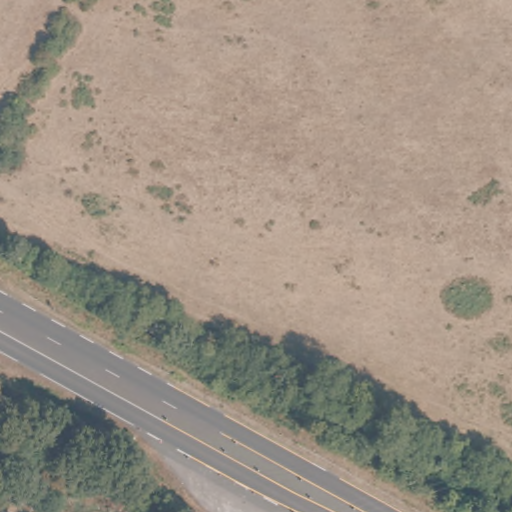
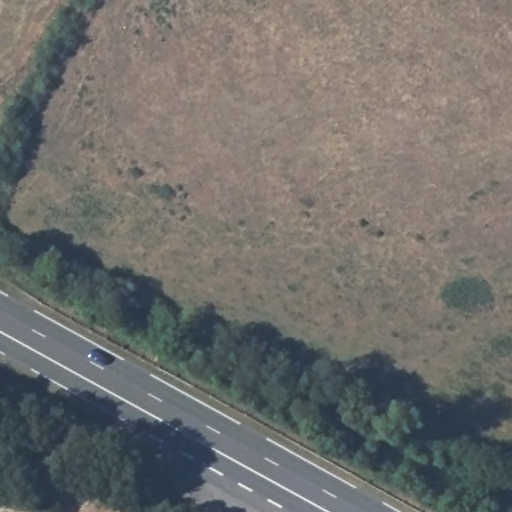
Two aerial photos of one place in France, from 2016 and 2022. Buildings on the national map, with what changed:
[]

